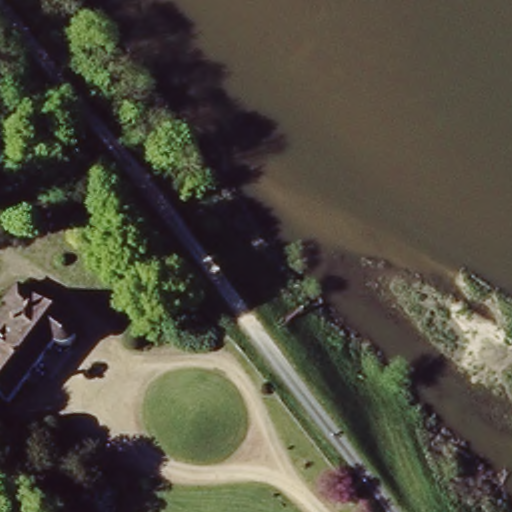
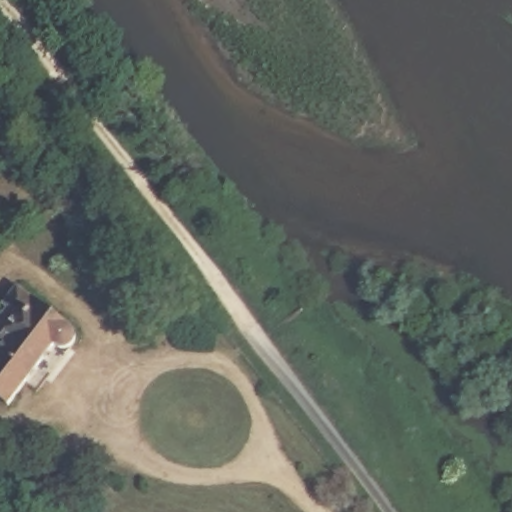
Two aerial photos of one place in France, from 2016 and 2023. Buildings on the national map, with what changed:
unchanged [(78,339),(74,342),(71,344),(67,343),(61,341),(15,400),(0,388),(0,354),(10,341),(0,334),(0,323),(15,304),(9,299),(23,281),(78,324),(80,327),(80,330),(80,335),(78,339)]

